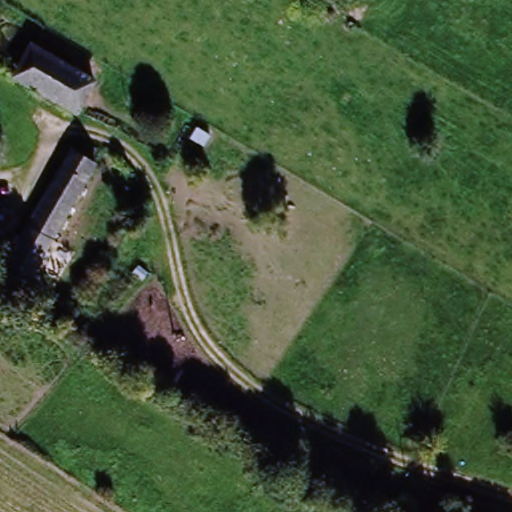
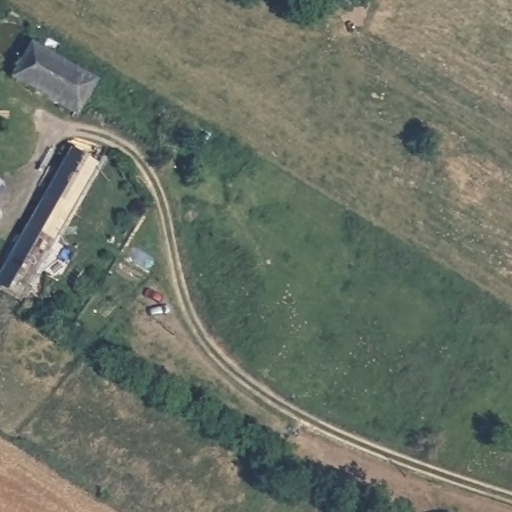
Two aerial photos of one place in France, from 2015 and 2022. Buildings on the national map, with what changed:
unchanged [(12,65),(32,40),(95,88),(76,113),(12,65)]
unchanged [(25,284),(1,269),(77,138),(102,153),(25,284)]

